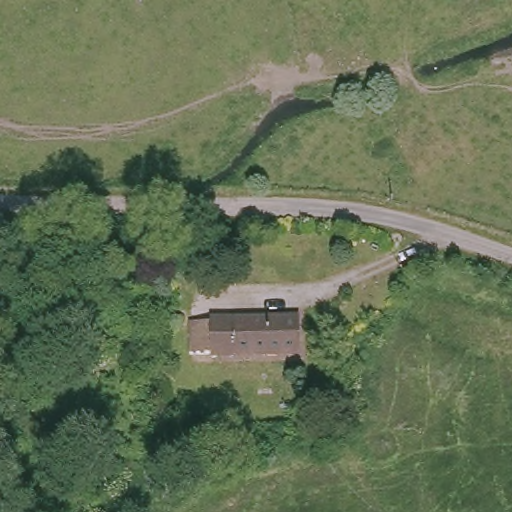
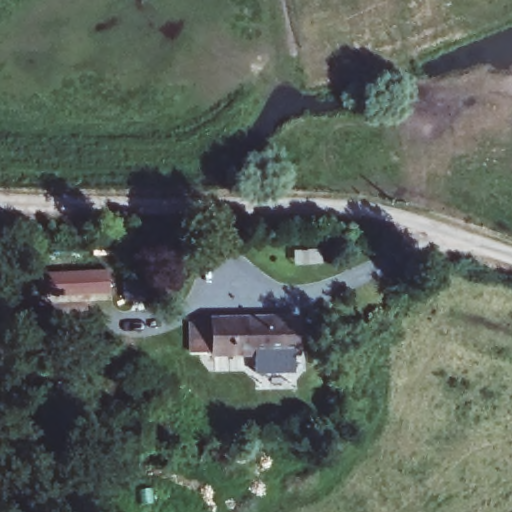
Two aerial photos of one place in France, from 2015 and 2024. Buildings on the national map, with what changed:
new [(46,298),(45,273),(108,270),(110,295),(46,298)]
unchanged [(203,316),(290,313),(290,347),(203,349),(203,316)]

